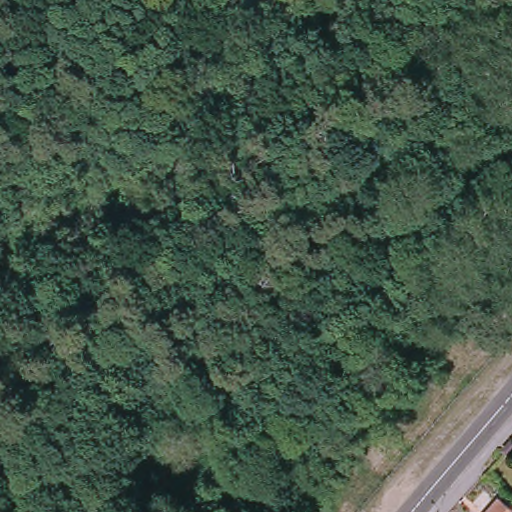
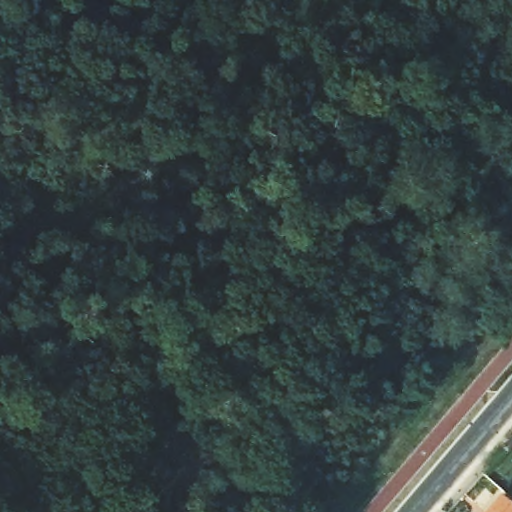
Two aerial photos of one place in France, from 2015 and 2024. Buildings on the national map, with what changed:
unchanged [(494,496),(511,512),(480,512),(494,496)]

